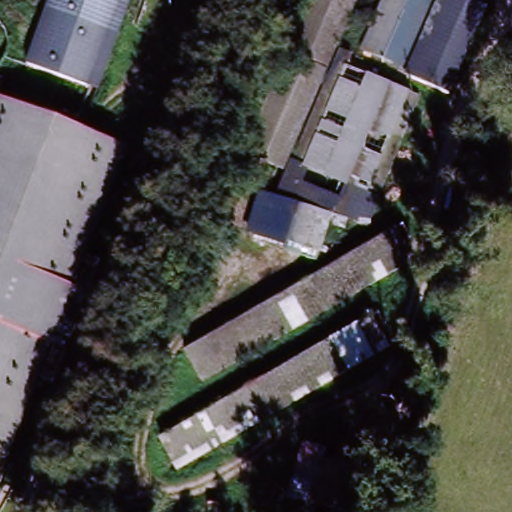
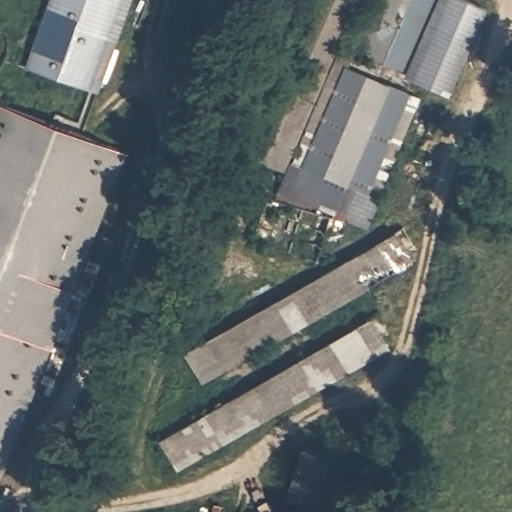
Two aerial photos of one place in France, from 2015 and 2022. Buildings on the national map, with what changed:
unchanged [(98,93),(27,66),(50,0),(135,0),(98,93)]
unchanged [(320,273),(322,268),(252,243),(267,197),(275,198),(287,174),(244,157),(311,0),(361,0),(340,52),(357,59),(352,68),(418,98),(370,231),(358,227),(351,253),(394,230),(416,263),(201,383),(186,354),(320,273)]
unchanged [(403,68),(362,48),(385,0),(436,0),(403,68)]
unchanged [(403,68),(436,0),(462,0),(488,12),(450,97),(406,77),(410,70),(403,68)]
unchanged [(177,88),(201,101),(168,174),(142,162),(177,88)]
unchanged [(0,101),(130,151),(0,488),(0,101)]
unchanged [(360,326),(380,357),(177,471),(160,442),(360,326)]
unchanged [(348,512),(304,512),(305,512),(285,505),(313,414),(374,432),(348,512)]

